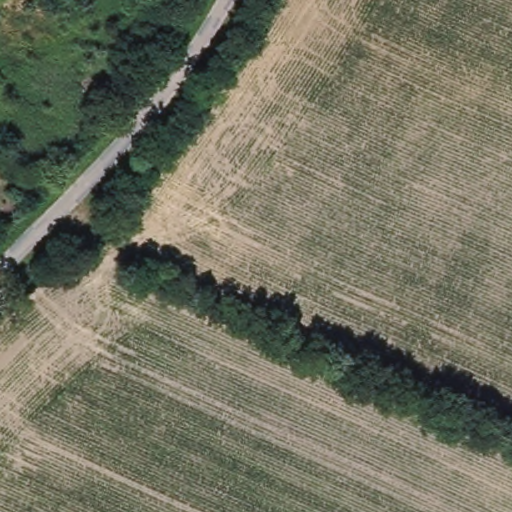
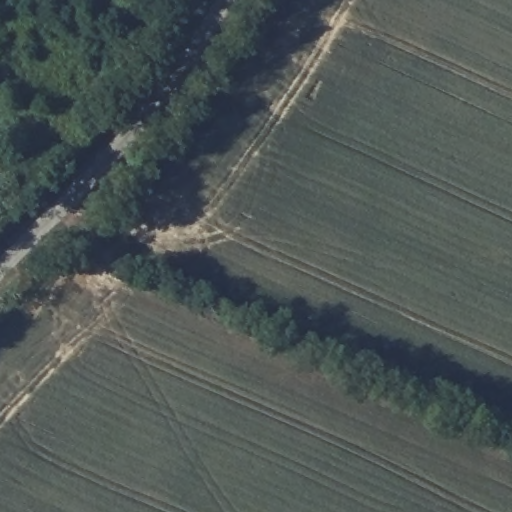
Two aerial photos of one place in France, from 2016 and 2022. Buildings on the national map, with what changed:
[]

